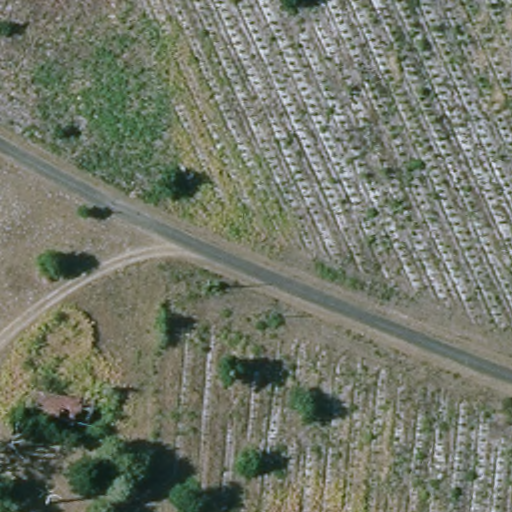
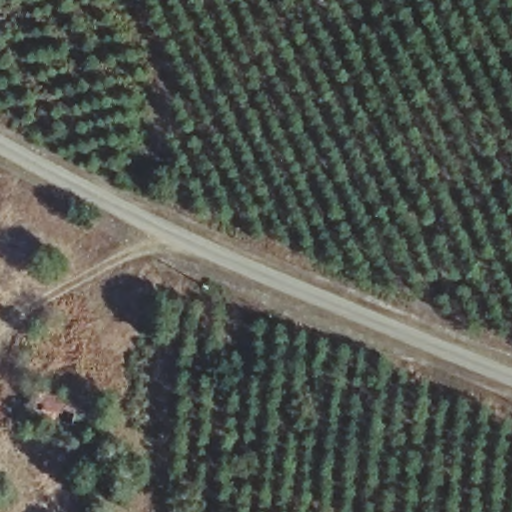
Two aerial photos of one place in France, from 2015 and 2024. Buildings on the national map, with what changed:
unchanged [(111,416),(108,434),(11,416),(14,399),(111,416)]

